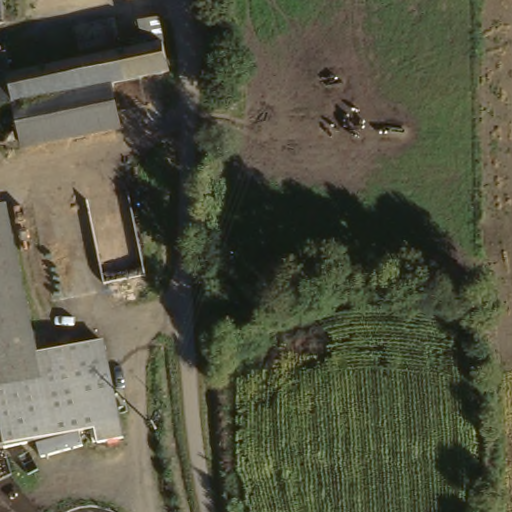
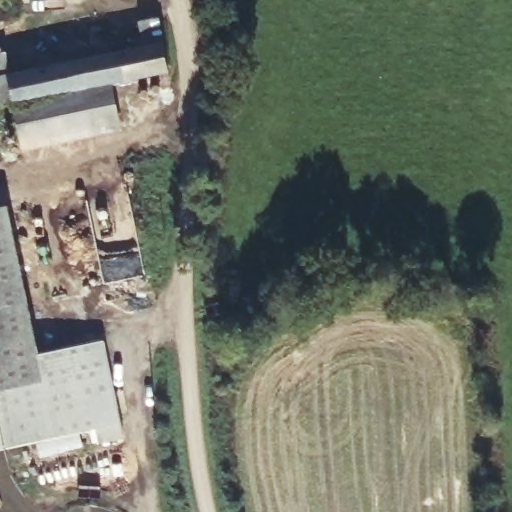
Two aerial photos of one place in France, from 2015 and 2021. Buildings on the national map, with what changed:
unchanged [(122,0),(132,0),(123,2),(122,0)]
unchanged [(119,47),(117,40),(133,35),(129,20),(153,15),(166,73),(114,86),(101,90),(16,110),(0,115),(0,75),(119,47)]
unchanged [(121,134),(24,157),(16,110),(101,90),(114,86),(121,134)]
unchanged [(4,214),(26,366),(93,355),(98,391),(108,452),(83,456),(81,441),(0,454),(0,215),(4,214)]

